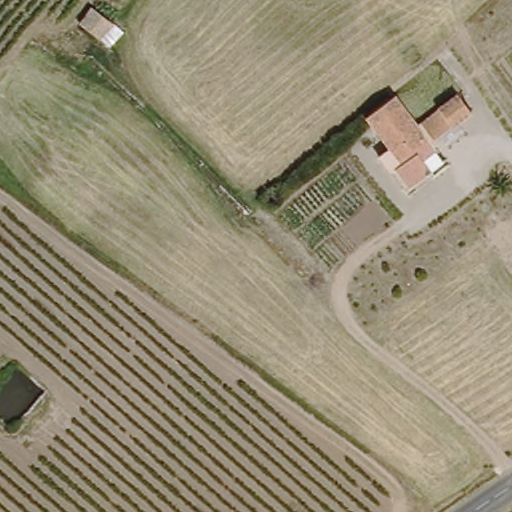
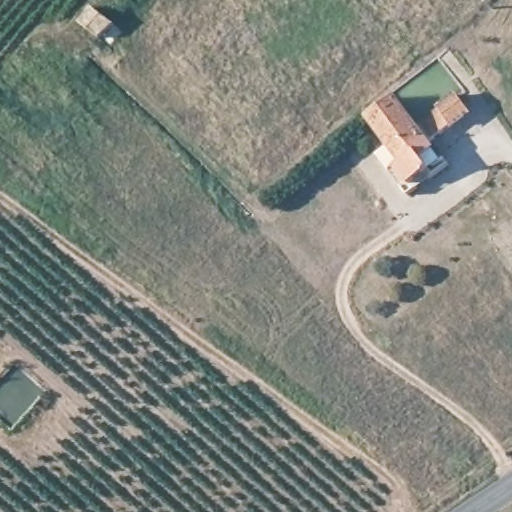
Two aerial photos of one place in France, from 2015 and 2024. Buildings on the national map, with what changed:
unchanged [(102,36),(80,20),(92,5),(114,20),(102,36)]
unchanged [(473,107),(445,136),(427,112),(453,89),(473,107)]
unchanged [(365,117),(393,94),(412,115),(424,131),(432,126),(447,147),(453,160),(403,196),(371,155),(386,144),(365,117)]

